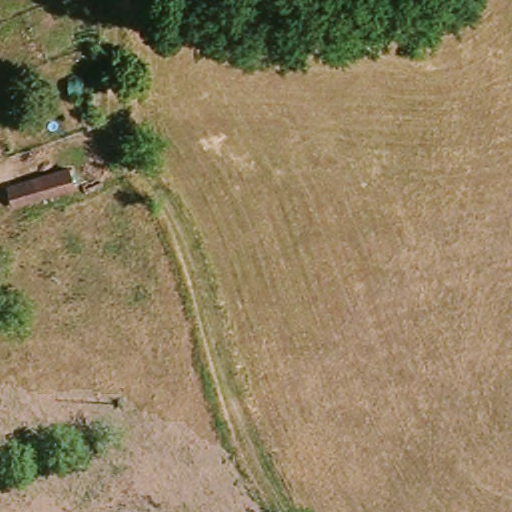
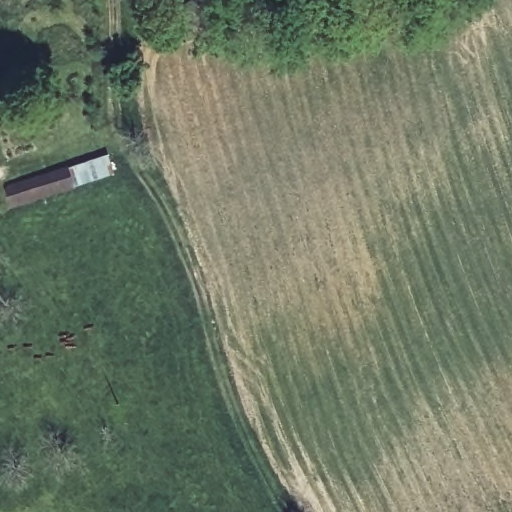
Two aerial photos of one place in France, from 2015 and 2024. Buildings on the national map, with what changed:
unchanged [(64,186),(20,200),(20,197),(15,182),(58,168),(64,186)]

